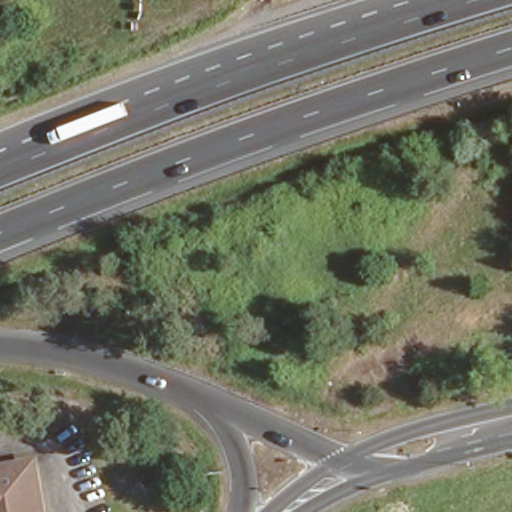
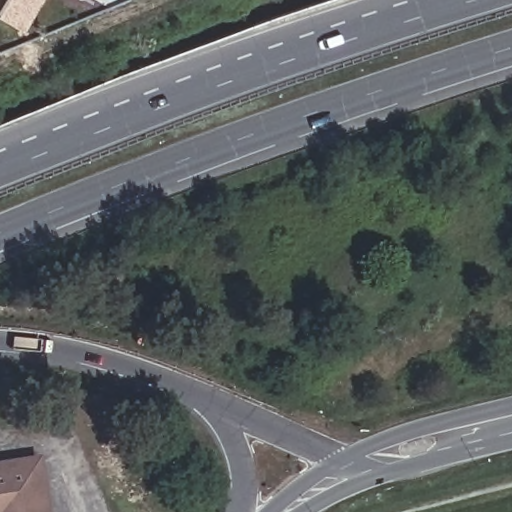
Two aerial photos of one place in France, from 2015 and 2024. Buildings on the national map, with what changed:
new [(24,33),(0,21),(0,11),(7,0),(43,0),(24,33)]
unchanged [(40,512),(0,512),(0,477),(34,471),(40,512)]

